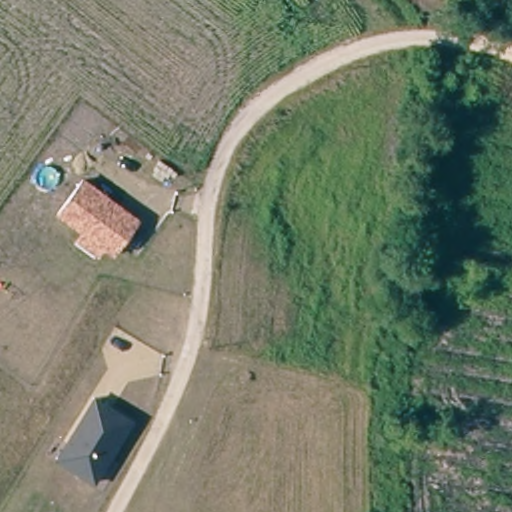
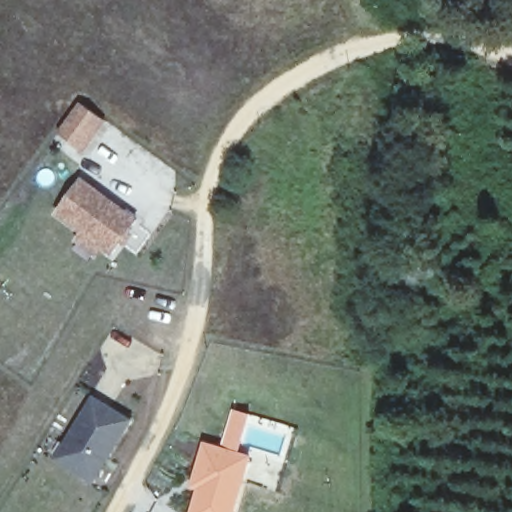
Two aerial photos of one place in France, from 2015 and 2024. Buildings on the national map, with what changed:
new [(86,151),(58,130),(80,100),(107,120),(86,151)]
unchanged [(114,257),(102,249),(98,256),(77,239),(81,232),(56,215),(85,176),(141,219),(114,257)]
unchanged [(134,420),(95,483),(55,459),(95,395),(134,420)]
new [(236,512),(191,512),(197,489),(190,487),(203,440),(253,455),(236,512)]

